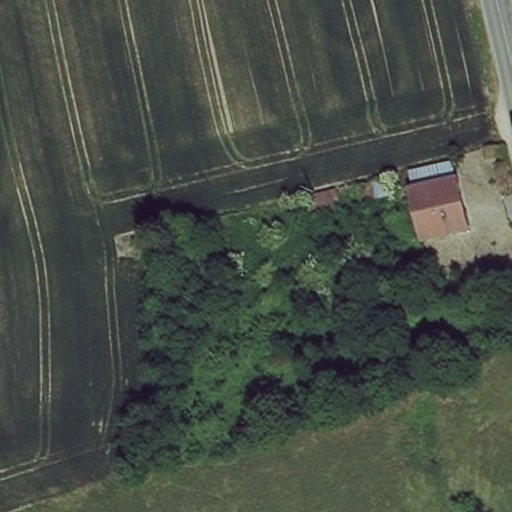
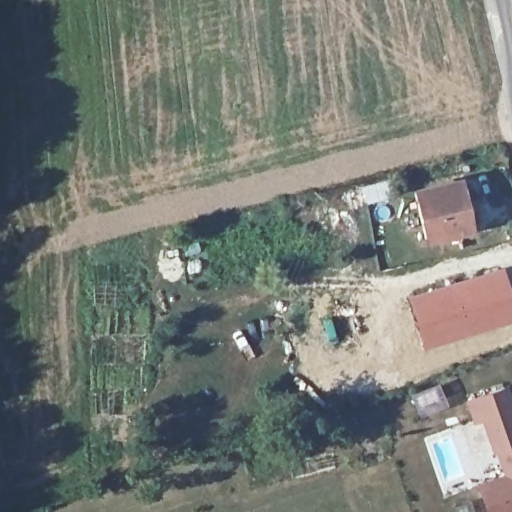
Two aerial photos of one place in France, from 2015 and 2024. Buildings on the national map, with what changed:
unchanged [(423,240),(412,190),(457,179),(469,229),(423,240)]
unchanged [(359,186),(384,180),(389,195),(363,201),(359,186)]
new [(512,299),(512,324),(423,351),(408,295),(503,267),(512,299)]
new [(439,381),(450,406),(419,420),(408,395),(439,381)]
new [(502,474),(495,452),(491,453),(480,421),(472,423),(464,398),(507,383),(512,398),(512,512),(485,512),(475,482),(502,474)]

